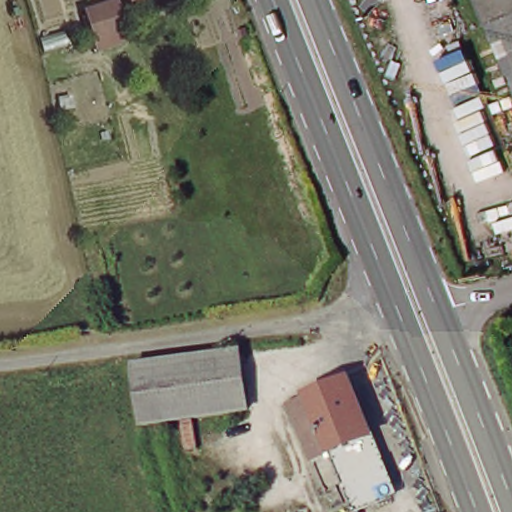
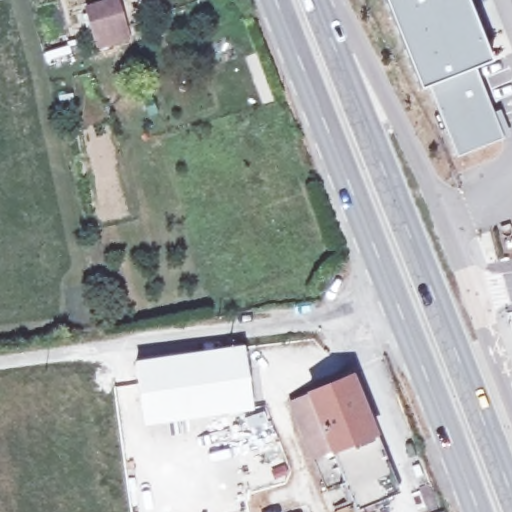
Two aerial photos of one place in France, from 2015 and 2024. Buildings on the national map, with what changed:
new [(468,66),(498,137),(452,153),(424,82),(416,88),(383,0),(461,0),(486,61),(468,66)]
demolished [(480,0),(512,0),(512,80),(480,0)]
unchanged [(106,37),(97,17),(127,5),(135,25),(106,37)]
unchanged [(243,410),(221,414),(160,424),(155,425),(141,362),(231,348),(243,410)]
unchanged [(311,440),(297,398),(357,378),(399,494),(390,497),(359,508),(339,450),(317,458),(311,440)]

